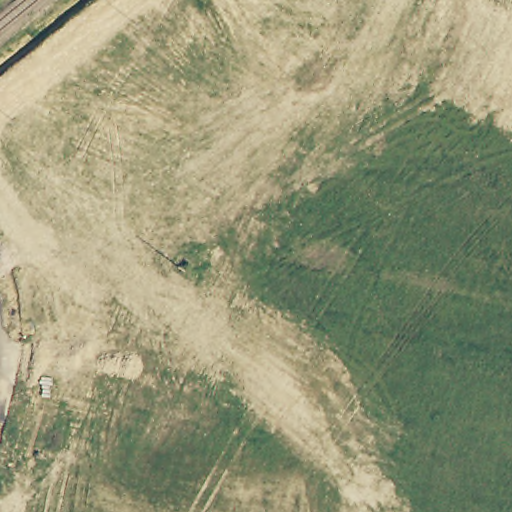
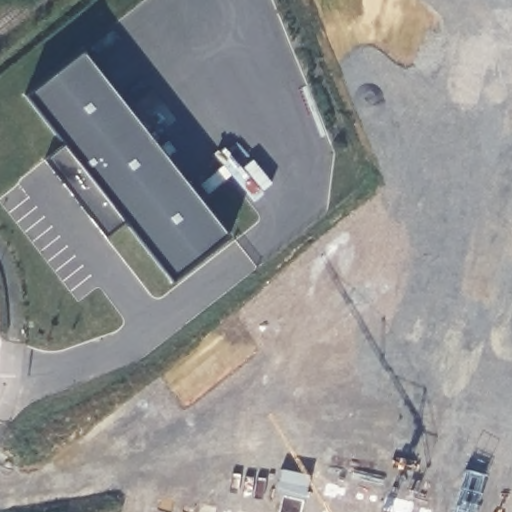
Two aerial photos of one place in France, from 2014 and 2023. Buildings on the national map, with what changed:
new [(227,236),(170,281),(126,224),(106,236),(45,160),(66,146),(26,96),(81,52),(227,236)]

